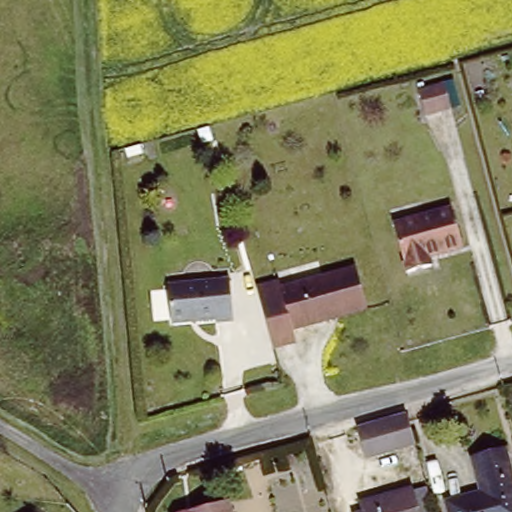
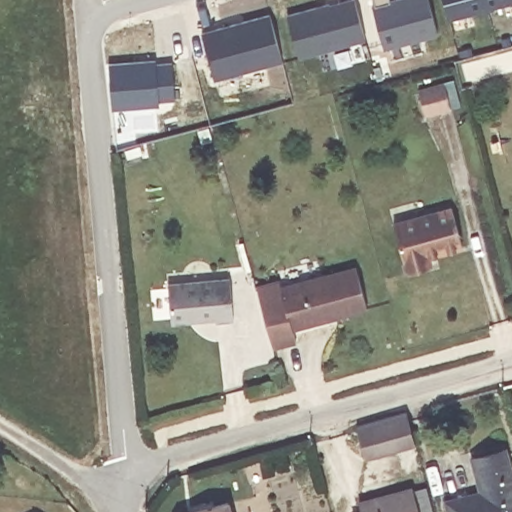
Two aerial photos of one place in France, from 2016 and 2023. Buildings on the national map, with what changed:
new [(331,7),(339,5),(338,1),(342,0),(355,0),(366,40),(299,57),(287,15),(330,4),(331,7)]
new [(449,16),(444,0),(485,0),(487,6),(449,16)]
new [(485,0),(509,0),(487,6),(485,0)]
new [(235,24),(236,26),(244,25),(244,21),(270,14),(282,60),(214,79),(201,33),(235,24)]
new [(156,60),(156,65),(172,63),(175,99),(159,100),(160,104),(112,108),(109,64),(156,60)]
unchanged [(431,82),(438,110),(420,115),(412,87),(431,82)]
unchanged [(409,273),(408,267),(396,222),(452,209),(461,246),(435,253),(437,260),(438,265),(409,273)]
unchanged [(354,262),(366,305),(292,326),(296,340),(271,347),(253,283),(278,276),(280,282),(354,262)]
unchanged [(236,280),(239,322),(216,324),(216,318),(172,320),(170,283),(236,280)]
unchanged [(406,410),(414,442),(364,455),(355,423),(406,410)]
unchanged [(512,448),(512,512),(455,512),(451,495),(485,487),(476,451),(511,442),(512,448)]
unchanged [(412,487),(418,512),(351,512),(351,511),(361,508),(359,501),(412,487)]
unchanged [(227,497),(230,512),(190,512),(189,506),(227,497)]

